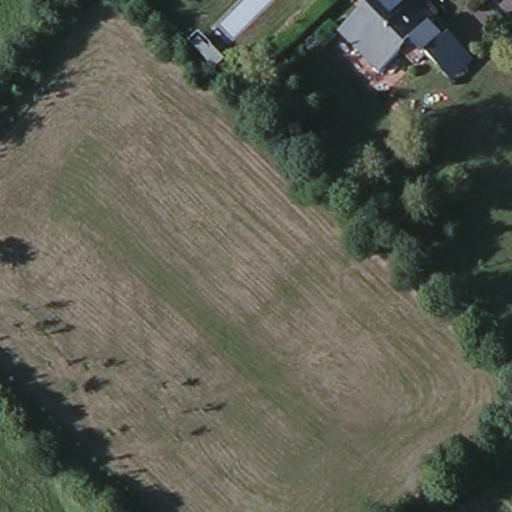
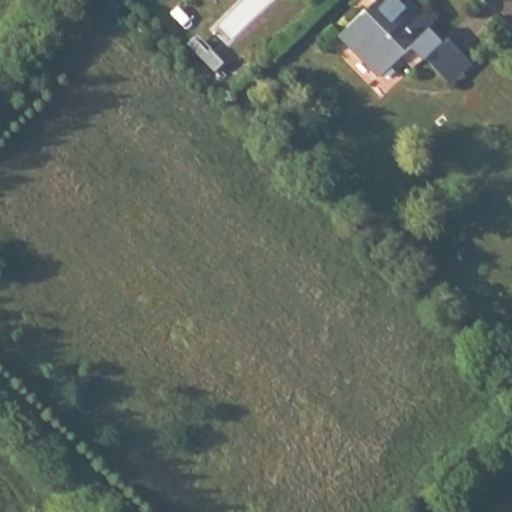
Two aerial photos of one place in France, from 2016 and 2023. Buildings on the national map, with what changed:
unchanged [(438,71),(420,52),(412,60),(398,47),(373,71),(334,32),(367,0),(402,0),(410,0),(429,20),(441,33),(459,52),(468,61),(447,81),(438,71)]

